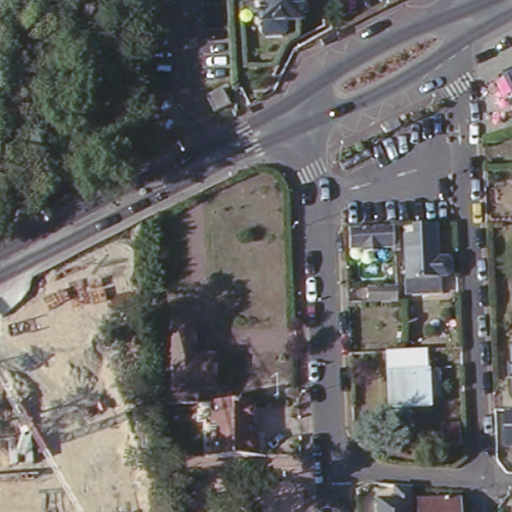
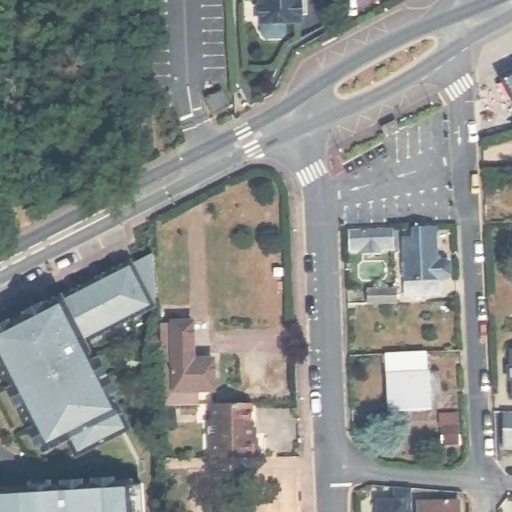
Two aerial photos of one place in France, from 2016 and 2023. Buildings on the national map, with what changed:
unchanged [(300,24),(257,26),(257,0),(300,0),(300,24)]
unchanged [(502,77),(512,71),(512,93),(502,77)]
unchanged [(205,97),(222,88),(231,104),(214,112),(205,97)]
unchanged [(390,128),(387,121),(402,114),(405,121),(390,128)]
unchanged [(399,290),(398,240),(405,239),(405,228),(429,227),(431,263),(441,262),(446,266),(446,277),(443,281),(431,281),(432,298),(399,299),(399,303),(370,303),(370,291),(399,290)]
unchanged [(388,229),(389,248),(378,248),(378,255),(362,256),(361,248),(347,248),(346,231),(388,229)]
new [(154,302),(84,338),(129,424),(84,449),(73,431),(49,444),(0,347),(0,330),(130,260),(154,302)]
unchanged [(195,319),(198,358),(218,357),(220,391),(188,392),(188,403),(161,405),(160,374),(168,374),(168,364),(159,364),(157,320),(195,319)]
unchanged [(512,344),(512,364),(511,345),(512,344)]
unchanged [(427,406),(385,408),(384,376),(388,377),(388,355),(426,353),(427,406)]
unchanged [(245,431),(259,430),(260,450),(208,453),(207,435),(203,435),(202,417),(207,417),(206,398),(244,396),(245,431)]
unchanged [(512,415),(512,447),(500,448),(498,416),(512,415)]
new [(149,512),(0,512),(0,491),(147,481),(149,512)]
unchanged [(392,500),(391,488),(411,487),(412,512),(375,512),(375,501),(392,500)]
unchanged [(457,497),(459,512),(417,512),(416,499),(457,497)]

